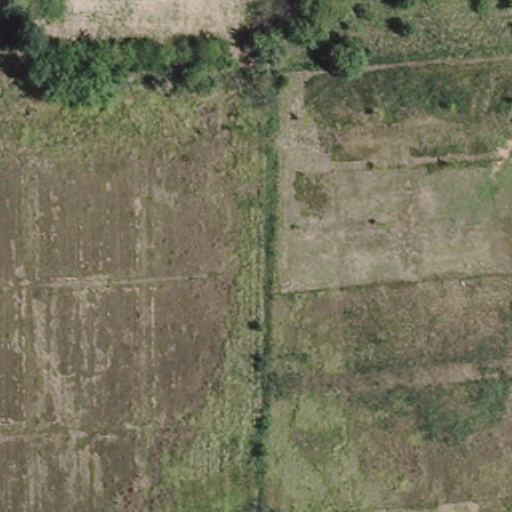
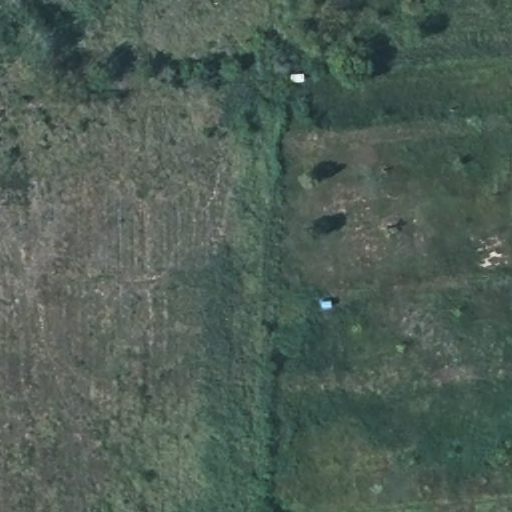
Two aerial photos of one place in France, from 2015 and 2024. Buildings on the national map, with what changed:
[]

